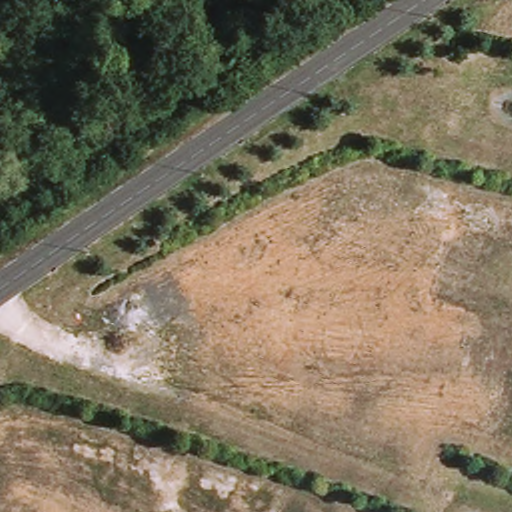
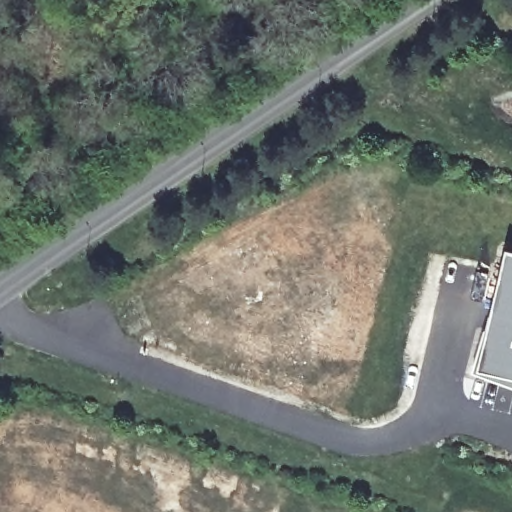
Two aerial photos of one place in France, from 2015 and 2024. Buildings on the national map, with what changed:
new [(512,248),(512,374),(479,367),(507,247),(512,248)]

